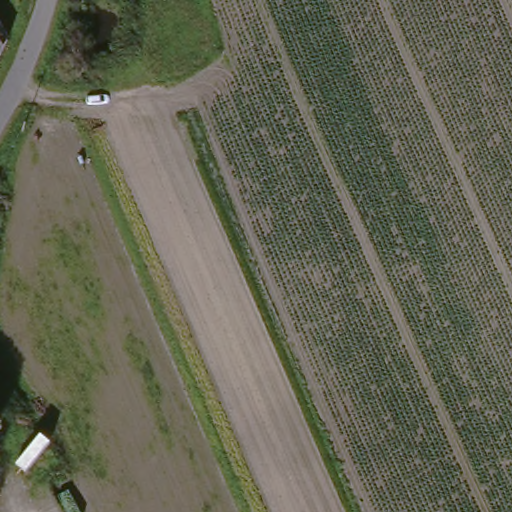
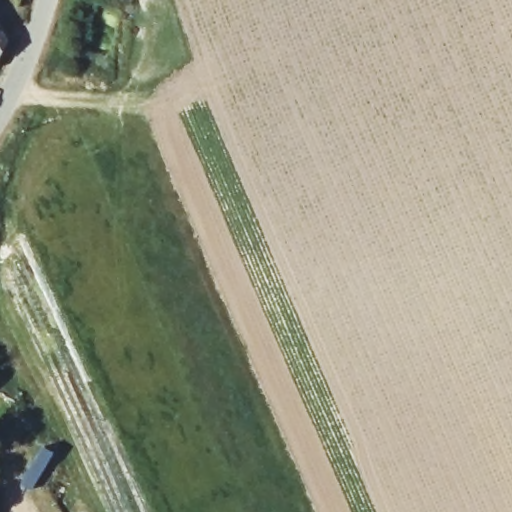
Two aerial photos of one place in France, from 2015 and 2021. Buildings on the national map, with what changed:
unchanged [(6,48),(0,60),(0,36),(6,48)]

